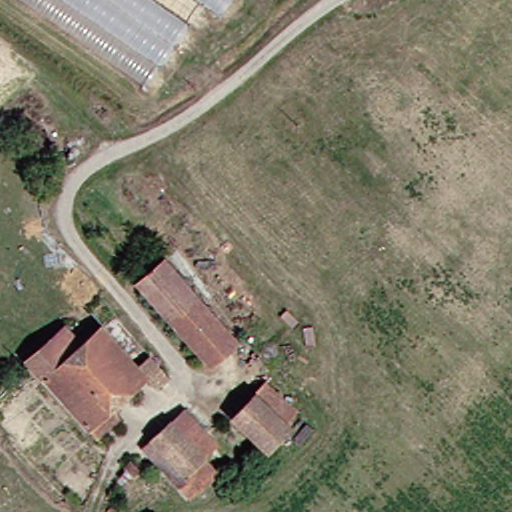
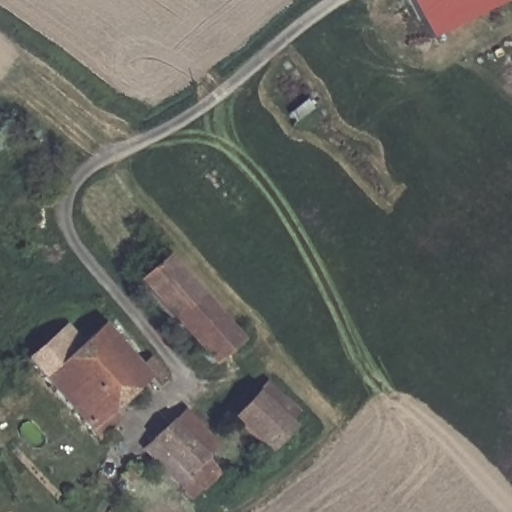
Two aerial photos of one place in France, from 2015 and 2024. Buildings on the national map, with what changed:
demolished [(221,17),(204,7),(147,91),(13,0),(232,0),(221,17)]
new [(407,0),(510,0),(427,41),(407,0)]
unchanged [(186,350),(126,281),(152,258),(224,340),(216,348),(197,363),(186,350)]
unchanged [(50,325),(66,342),(90,320),(127,361),(137,353),(155,373),(143,383),(137,377),(100,409),(107,417),(85,436),(12,358),(50,325)]
unchanged [(252,388),(282,416),(272,426),(276,430),(255,454),(220,422),(252,388)]
unchanged [(186,495),(137,447),(147,437),(164,422),(178,408),(209,440),(194,454),(211,471),(186,495)]
unchanged [(139,478),(131,485),(124,478),(132,471),(139,478)]

